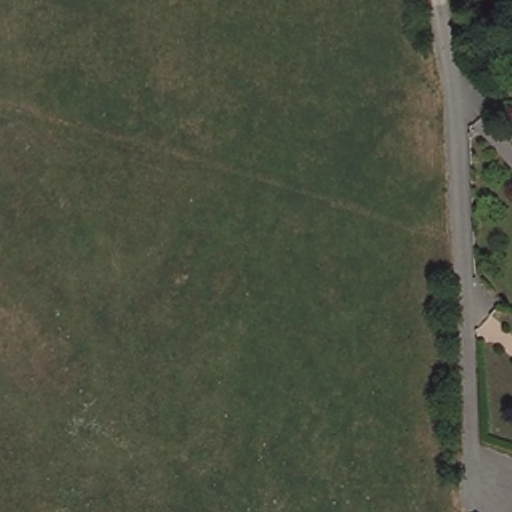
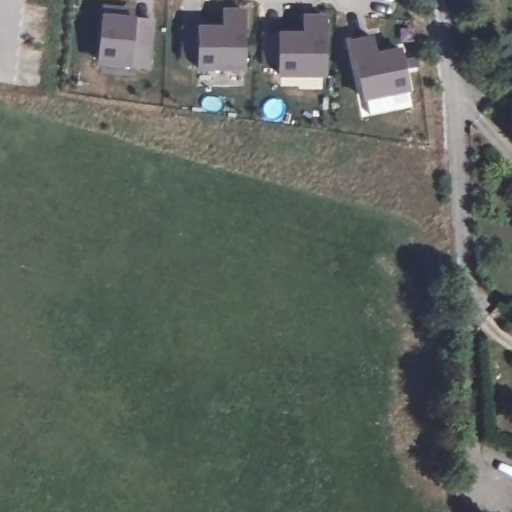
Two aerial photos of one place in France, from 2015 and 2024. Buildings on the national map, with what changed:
new [(122,15),(121,22),(154,25),(150,69),(99,64),(103,13),(122,15)]
new [(223,31),(224,14),(245,13),(245,72),(199,72),(198,62),(184,62),(183,32),(223,31)]
new [(305,37),(306,19),(326,20),(326,77),(280,78),(280,68),(266,68),(265,37),(305,37)]
new [(374,40),(377,57),(401,52),(410,91),(365,101),(353,45),(374,40)]

